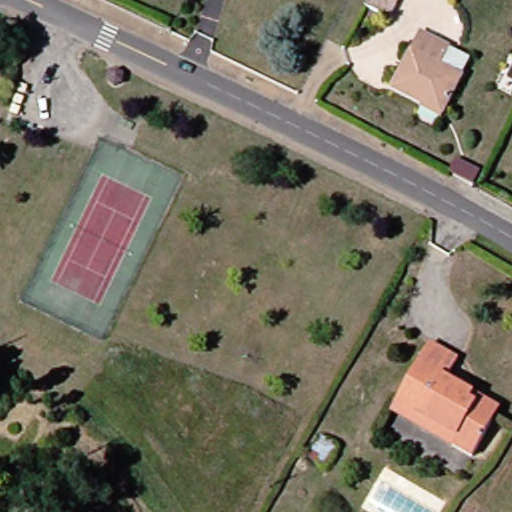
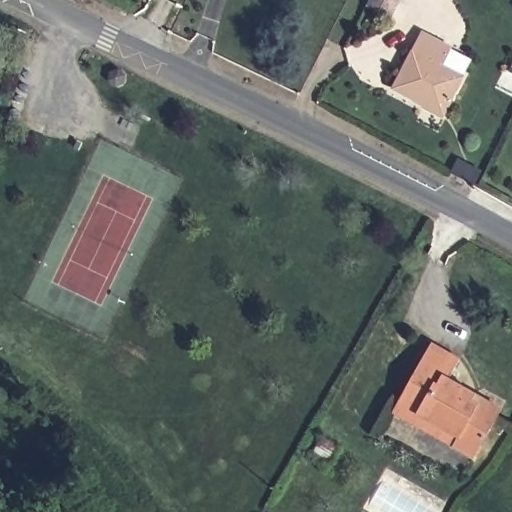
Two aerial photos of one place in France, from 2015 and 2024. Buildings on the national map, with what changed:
unchanged [(373,0),(405,0),(398,14),(373,0)]
unchanged [(432,95),(428,101),(400,85),(423,32),(460,49),(477,58),(472,71),(453,107),(432,95)]
unchanged [(441,340),(465,353),(456,373),(446,370),(439,384),(420,373),(441,340)]
unchanged [(404,403),(420,373),(439,384),(446,370),(456,373),(507,403),(477,458),(456,445),(396,413),(404,403)]

